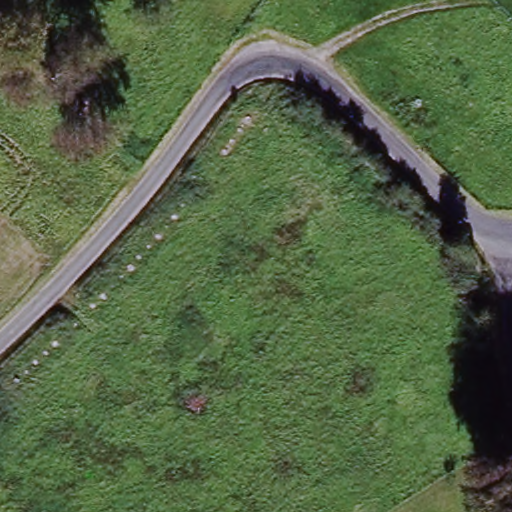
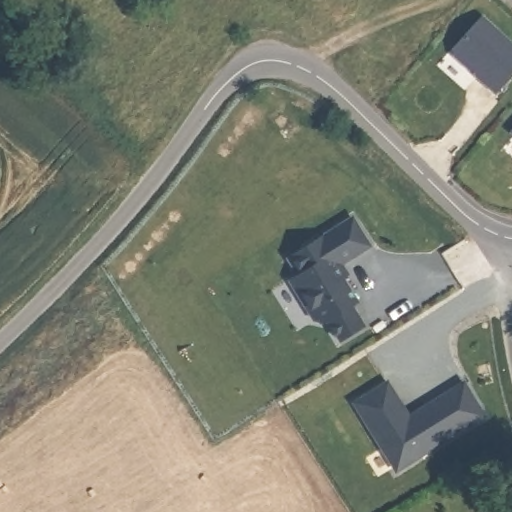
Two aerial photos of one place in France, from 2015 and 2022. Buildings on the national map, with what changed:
new [(512,46),(512,84),(499,99),(455,62),(455,54),(482,21),(512,46)]
demolished [(418,142),(415,139),(368,96),(390,70),(440,116),(418,142)]
new [(370,243),(340,261),(347,272),(342,275),(357,299),(351,303),(365,323),(341,338),(328,318),(325,319),(316,318),(291,279),(300,273),(289,256),(352,215),(370,243)]
new [(386,383),(411,421),(419,416),(416,412),(479,371),(500,404),(396,471),(353,404),(386,383)]

